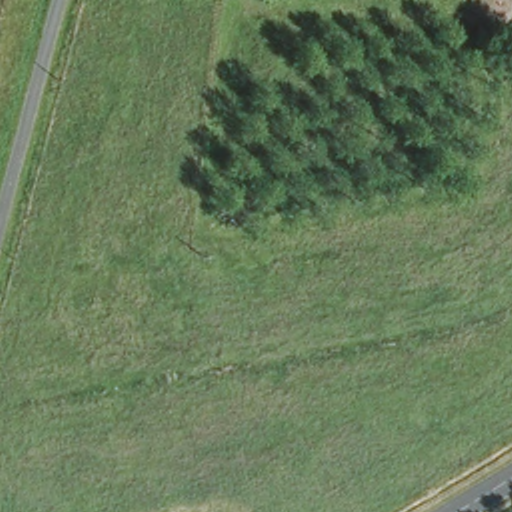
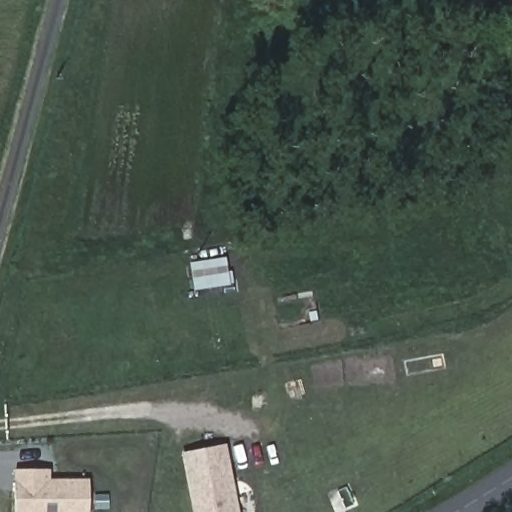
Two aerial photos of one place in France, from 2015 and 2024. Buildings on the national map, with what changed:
new [(188,484),(186,470),(182,453),(224,445),(227,462),(230,476),(237,512),(193,512),(188,484)]
new [(47,468),(47,480),(87,480),(87,512),(15,512),(15,468),(47,468)]

